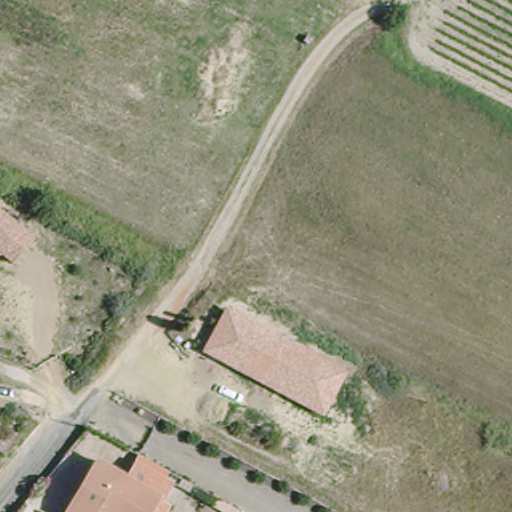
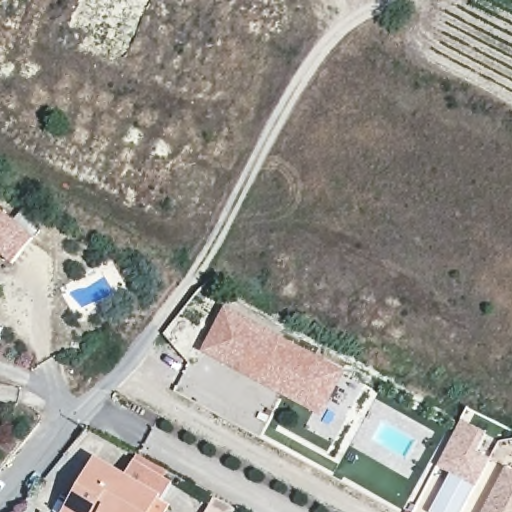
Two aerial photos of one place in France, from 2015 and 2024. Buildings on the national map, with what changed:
unchanged [(17,262),(0,249),(0,205),(37,233),(17,262)]
unchanged [(202,352),(225,310),(346,374),(322,417),(202,352)]
new [(449,473),(437,466),(461,421),(487,435),(477,455),(489,462),(462,512),(428,512),(449,473)]
unchanged [(146,512),(65,512),(91,462),(120,476),(132,456),(160,471),(150,492),(155,495),(146,512)]
new [(512,473),(512,512),(483,512),(506,469),(512,473)]

